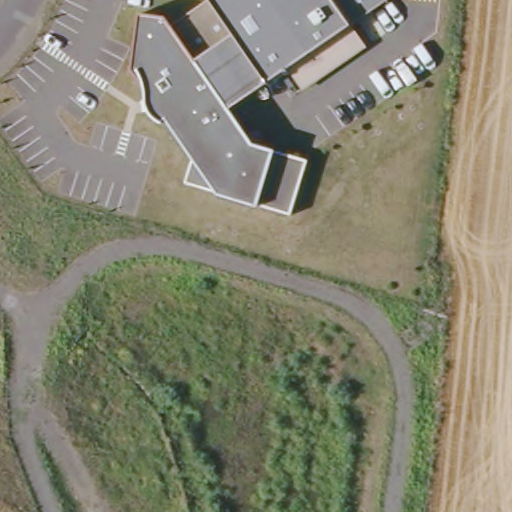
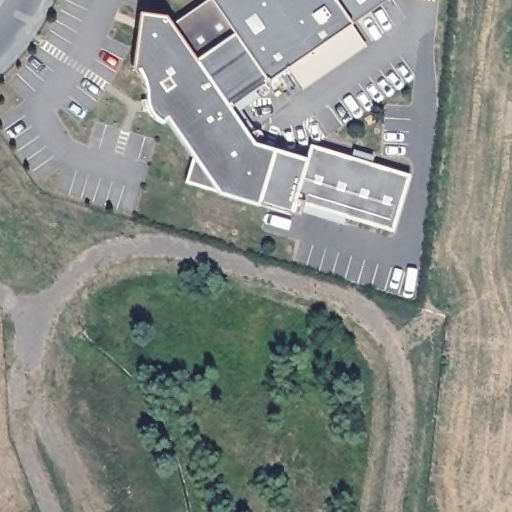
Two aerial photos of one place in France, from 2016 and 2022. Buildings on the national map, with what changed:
unchanged [(350,23),(365,45),(301,90),(285,67),(228,108),(251,143),(273,149),(306,158),(291,214),(183,183),(192,156),(165,119),(162,121),(160,121),(157,121),(147,110),(144,104),(143,86),(131,67),(137,13),(165,17),(168,24),(201,0),(384,0),(350,23)]
new [(392,234),(297,200),(293,214),(291,214),(306,158),(310,145),(410,176),(392,234)]

